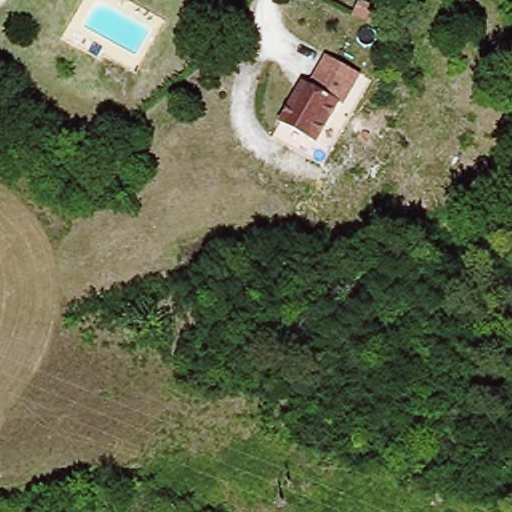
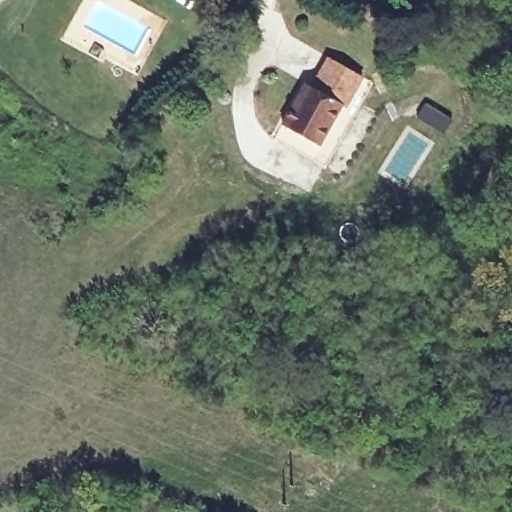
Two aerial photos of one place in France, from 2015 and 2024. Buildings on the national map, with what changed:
unchanged [(359,0),(365,0),(393,12),(386,34),(351,22),(359,0)]
unchanged [(310,86),(326,56),(365,77),(343,117),(337,113),(318,147),(278,123),(302,82),(310,86)]

